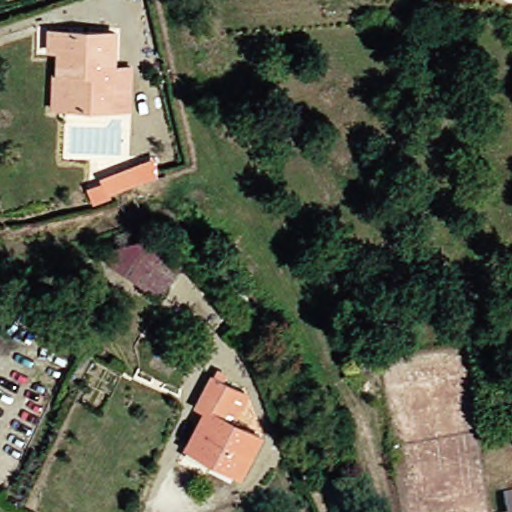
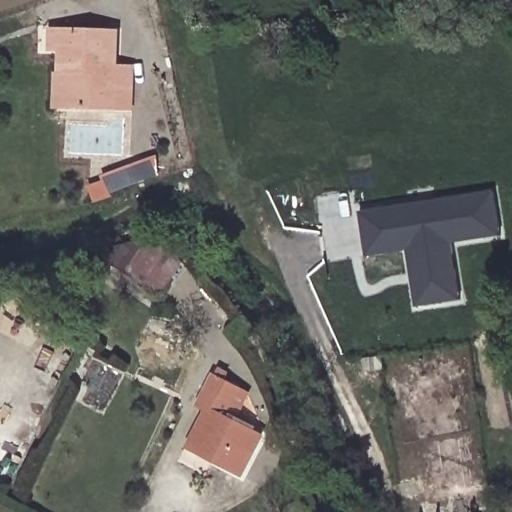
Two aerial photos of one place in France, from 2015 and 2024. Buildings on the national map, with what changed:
unchanged [(63,47),(55,47),(55,26),(120,29),(117,104),(74,102),(75,74),(63,74),(63,62),(63,47)]
unchanged [(136,183),(109,193),(110,198),(91,202),(89,183),(101,181),(101,174),(131,165),(136,183)]
new [(417,308),(407,250),(365,257),(357,213),(405,204),(432,199),(492,189),(499,226),(500,234),(485,237),(451,243),(458,280),(462,300),(441,304),(417,308)]
unchanged [(122,275),(140,243),(177,266),(160,294),(122,275)]
unchanged [(384,393),(370,395),(368,375),(382,373),(384,393)]
unchanged [(192,444),(212,411),(202,405),(220,377),(244,392),(228,419),(265,441),(244,476),(192,444)]

